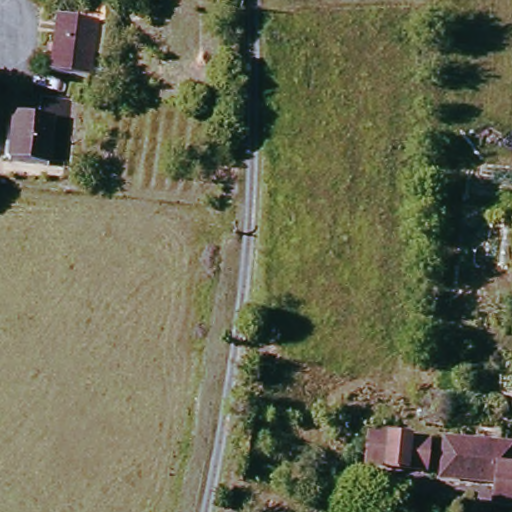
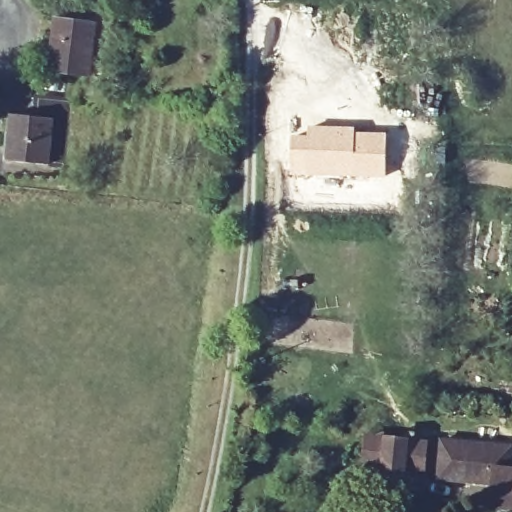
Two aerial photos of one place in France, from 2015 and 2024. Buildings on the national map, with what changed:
unchanged [(61,16),(100,22),(90,77),(52,70),(61,16)]
unchanged [(16,114),(38,118),(41,98),(72,105),(68,123),(58,121),(49,169),(8,161),(16,114)]
new [(291,132),(306,132),(307,125),(355,126),(355,130),(387,132),(385,177),(290,174),(291,132)]
unchanged [(497,480),(440,477),(442,438),(512,442),(512,501),(496,500),(497,480)]
unchanged [(367,471),(367,441),(427,442),(427,472),(367,471)]

